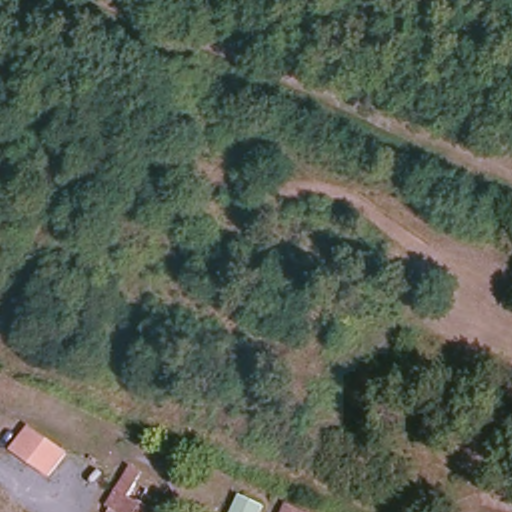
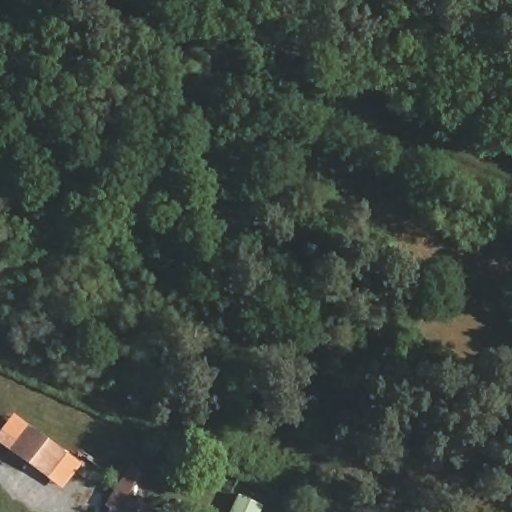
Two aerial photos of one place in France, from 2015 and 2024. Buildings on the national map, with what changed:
unchanged [(4,443),(19,426),(60,458),(64,453),(71,458),(53,481),(4,443)]
unchanged [(129,468),(139,474),(134,482),(149,490),(142,502),(158,512),(114,512),(105,507),(129,468)]
unchanged [(263,504),(260,512),(234,512),(240,496),(263,504)]
unchanged [(298,511),(300,512),(279,512),(283,504),(298,511)]

